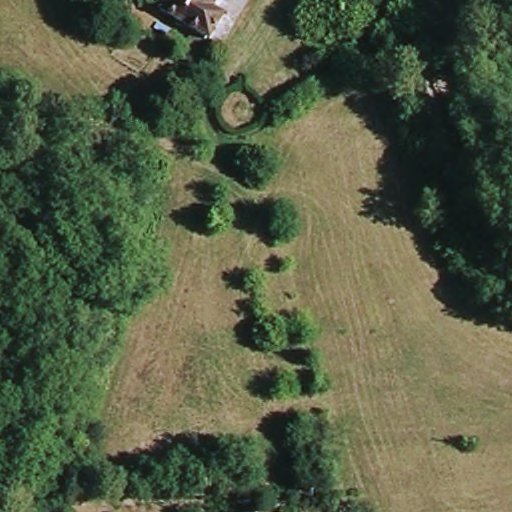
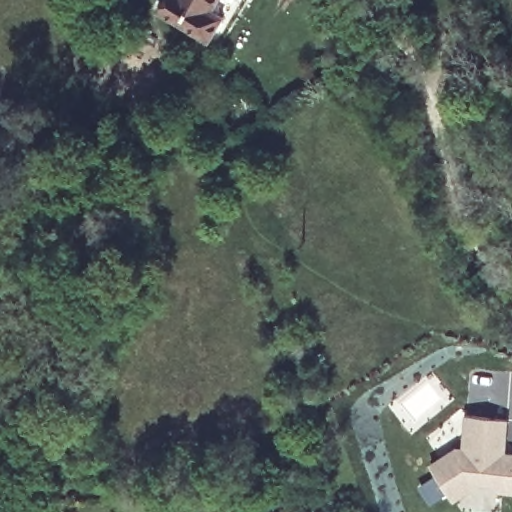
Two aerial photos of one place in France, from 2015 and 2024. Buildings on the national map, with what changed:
unchanged [(206,8),(217,14),(203,38),(163,15),(172,0),(211,0),(206,8)]
new [(430,464),(451,450),(456,457),(467,450),(467,439),(463,437),(465,415),(506,418),(505,440),(501,443),(500,451),(512,452),(512,490),(498,488),(494,482),(479,481),(467,489),(452,498),(448,492),(430,464)]

